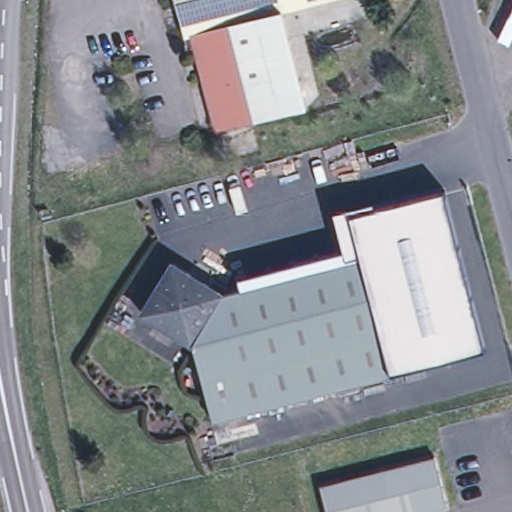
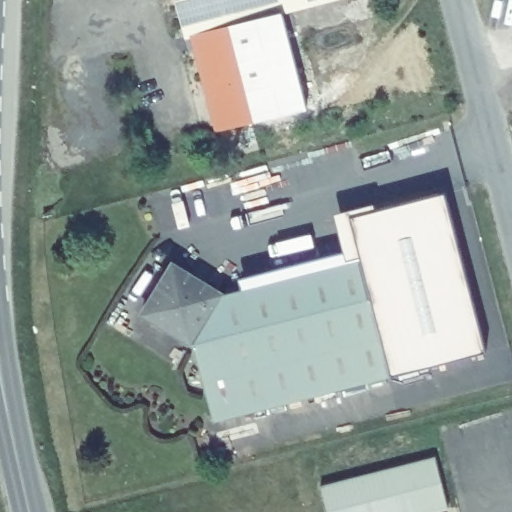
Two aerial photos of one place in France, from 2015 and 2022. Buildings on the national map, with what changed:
unchanged [(299,8),(282,12),(307,107),(217,131),(192,35),(190,35),(189,35),(187,35),(186,34),(185,33),(185,32),(184,31),(176,0),(330,0),(299,8)]
unchanged [(332,214),(349,207),(350,219),(445,194),(482,351),(390,376),(357,261),(342,264),(332,214)]
unchanged [(390,376),(215,422),(196,345),(142,315),(172,258),(225,293),(342,264),(357,261),(390,376)]
unchanged [(440,455),(453,507),(440,510),(440,512),(332,512),(325,485),(440,455)]

